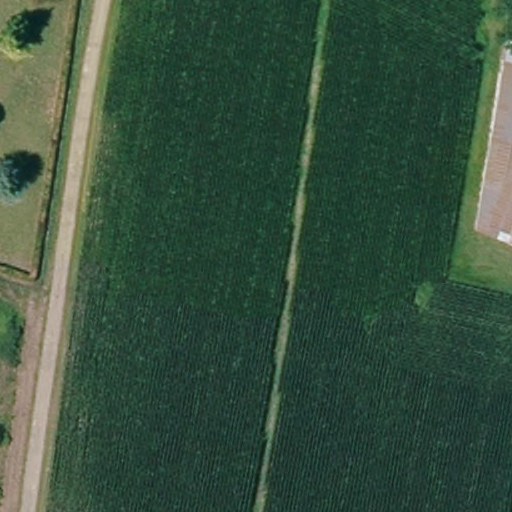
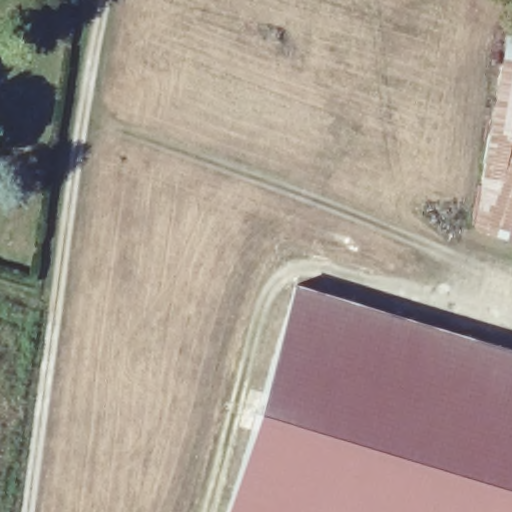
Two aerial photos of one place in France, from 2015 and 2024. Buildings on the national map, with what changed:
unchanged [(512,21),(512,48),(500,46),(505,20),(512,21)]
unchanged [(506,61),(512,63),(512,241),(477,232),(506,61)]
new [(512,350),(512,512),(228,512),(295,284),(512,350)]

